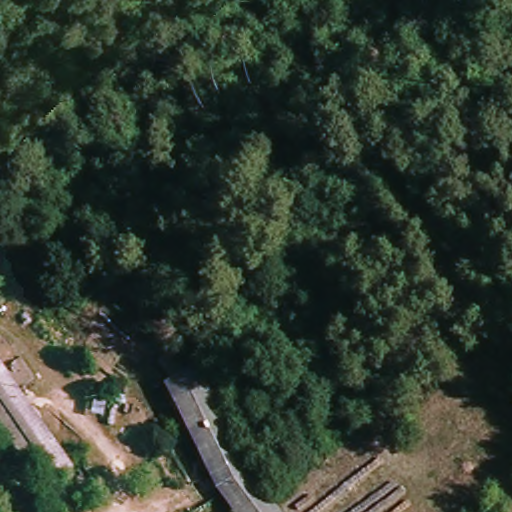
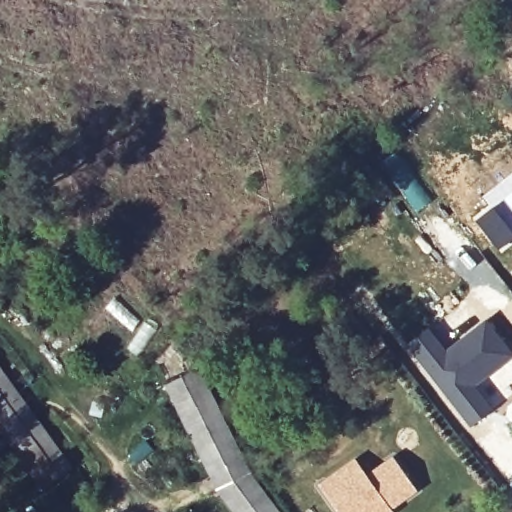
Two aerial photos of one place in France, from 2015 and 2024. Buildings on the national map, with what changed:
new [(408,345),(429,327),(446,350),(487,319),(512,352),(512,357),(475,385),(493,410),(472,426),(408,345)]
unchanged [(0,418),(0,358),(76,470),(50,490),(0,418)]
unchanged [(176,393),(203,377),(251,471),(280,512),(239,512),(216,481),(176,393)]
new [(393,458),(416,491),(391,510),(392,512),(339,512),(319,485),(355,459),(367,475),(393,458)]

